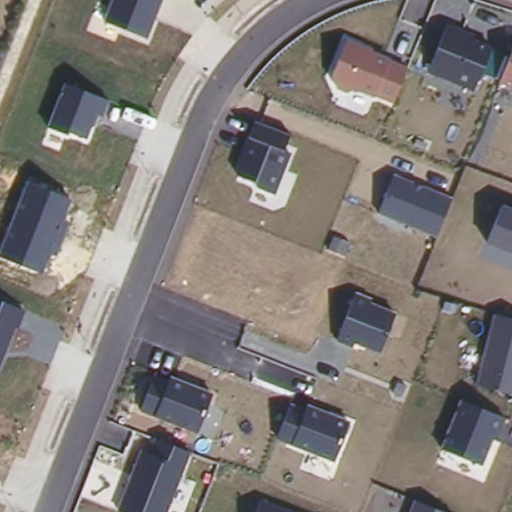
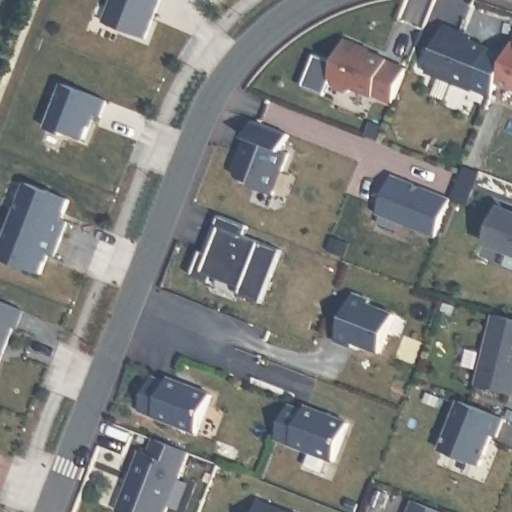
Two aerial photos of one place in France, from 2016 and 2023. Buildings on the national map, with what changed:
unchanged [(161,0),(146,39),(104,22),(112,0),(161,0)]
unchanged [(445,29),(511,52),(512,48),(512,91),(495,85),(497,79),(481,74),(474,91),(427,71),(445,29)]
unchanged [(354,89),(349,93),(336,89),(329,79),(346,39),(409,66),(394,104),(354,89)]
unchanged [(63,81),(109,100),(104,118),(96,116),(88,139),(68,133),(66,136),(46,126),(63,81)]
unchanged [(250,185),(253,179),(238,173),(236,163),(253,121),(290,135),(285,151),(290,154),(275,194),(250,185)]
unchanged [(379,213),(396,174),(453,198),(437,235),(379,213)]
unchanged [(71,199),(64,219),(71,222),(58,258),(49,256),(43,273),(0,257),(0,252),(26,183),(71,199)]
unchanged [(485,244),(501,206),(512,210),(512,254),(485,244)]
new [(262,302),(240,294),(243,288),(213,275),(210,282),(193,274),(202,250),(210,254),(215,244),(209,242),(219,214),(249,225),(245,234),(282,250),(262,302)]
unchanged [(354,344),(352,348),(334,340),(354,294),(373,300),(371,304),(397,313),(381,354),(354,344)]
unchanged [(19,329),(14,328),(0,366),(0,302),(24,311),(19,329)]
unchanged [(476,385),(492,314),(512,319),(512,393),(476,385)]
unchanged [(151,382),(165,387),(169,377),(214,393),(199,434),(140,411),(151,382)]
unchanged [(459,402),(506,419),(501,438),(494,436),(483,466),(439,449),(459,402)]
unchanged [(290,404),(305,411),(308,405),(350,420),(334,463),(276,439),(290,404)]
unchanged [(139,451),(146,453),(153,438),(189,453),(168,512),(122,512),(118,510),(139,451)]
unchanged [(263,499),(291,512),(256,512),(263,499)]
unchanged [(415,502),(441,512),(411,512),(415,502)]

